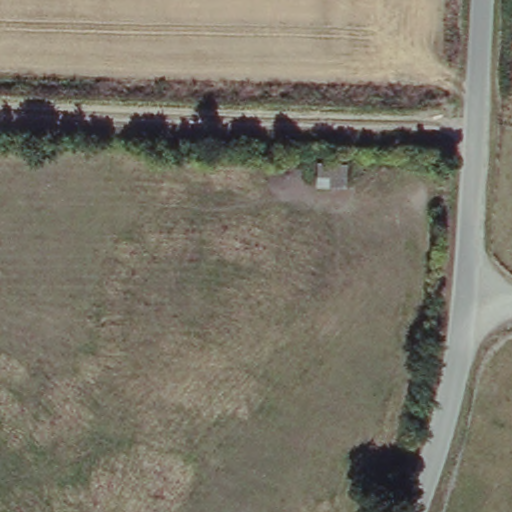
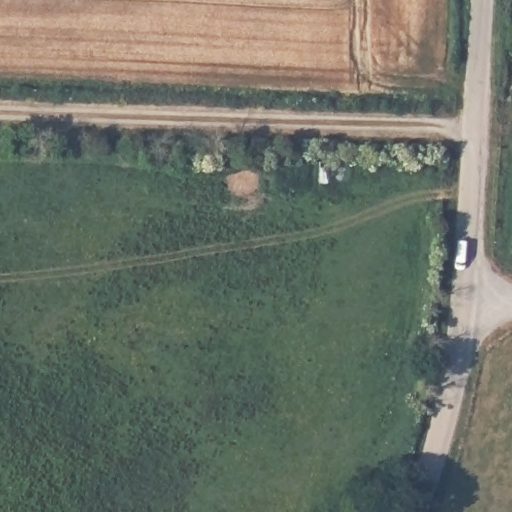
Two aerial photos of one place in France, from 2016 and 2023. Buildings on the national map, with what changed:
unchanged [(349,192),(316,189),(317,158),(352,162),(349,192)]

